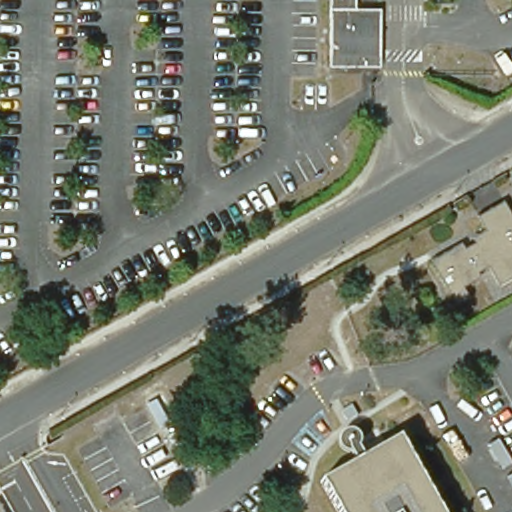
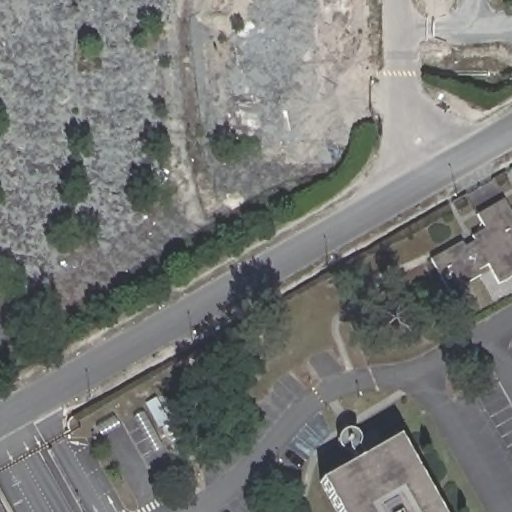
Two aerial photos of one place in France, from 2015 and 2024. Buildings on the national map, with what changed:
demolished [(377,65),(331,65),(332,5),(332,0),(355,0),(354,5),(378,6),(377,65)]
unchanged [(466,246),(476,240),(473,235),(486,227),(480,215),(504,202),(512,212),(512,276),(501,282),(488,263),(479,270),(481,275),(465,286),(470,295),(456,302),(433,260),(464,244),(466,246)]
unchanged [(397,440),(432,505),(436,512),(335,512),(318,481),(397,440)]
unchanged [(3,512),(0,512),(0,506),(3,512)]

